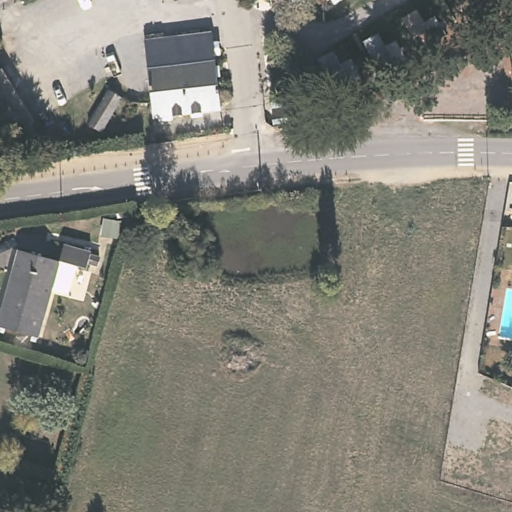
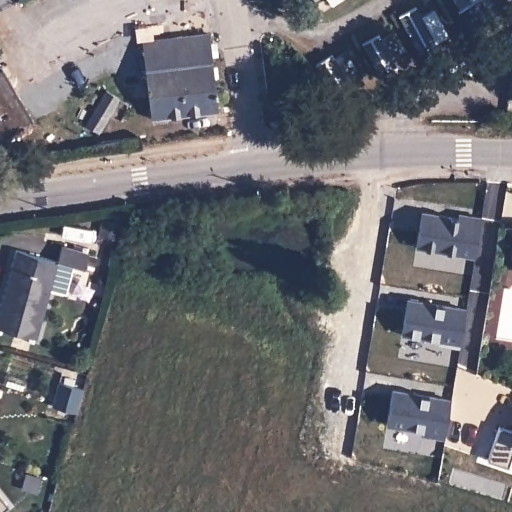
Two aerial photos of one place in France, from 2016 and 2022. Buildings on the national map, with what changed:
unchanged [(217,89),(220,89),(223,89),(226,91),(227,93),(229,96),(228,99),(227,101),(224,104),(220,105),(220,110),(153,117),(144,40),(210,33),(217,89)]
unchanged [(34,117),(0,137),(0,65),(2,63),(34,117)]
unchanged [(122,98),(100,132),(87,123),(109,90),(122,98)]
new [(483,216),(476,256),(417,247),(422,211),(460,217),(460,212),(483,216)]
unchanged [(91,248),(87,265),(75,262),(68,288),(51,283),(39,332),(0,321),(0,312),(19,245),(60,256),(64,239),(91,248)]
new [(438,343),(440,339),(403,334),(409,297),(467,308),(460,346),(438,343)]
new [(61,381),(85,387),(79,411),(55,405),(61,381)]
new [(445,438),(422,434),(425,430),(387,424),(393,387),(452,397),(445,438)]
new [(490,459),(500,427),(512,431),(512,454),(508,466),(490,459)]
new [(11,505),(3,512),(0,512),(0,492),(11,505)]

